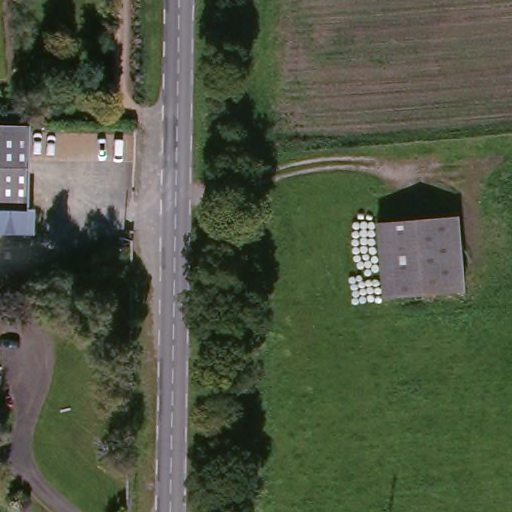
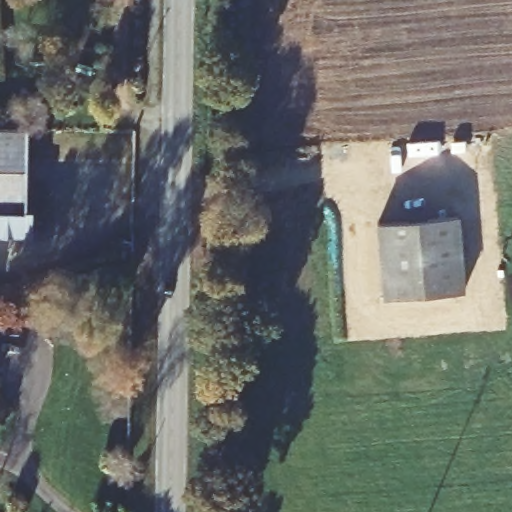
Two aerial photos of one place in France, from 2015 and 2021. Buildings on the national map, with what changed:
unchanged [(22,210),(0,209),(0,123),(26,124),(22,210)]
unchanged [(452,217),(459,292),(379,300),(372,225),(452,217)]

